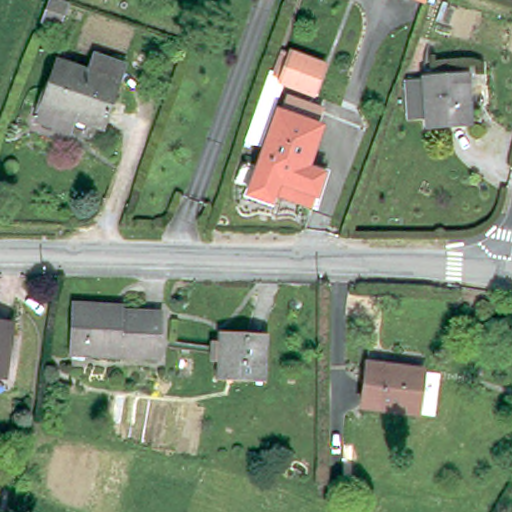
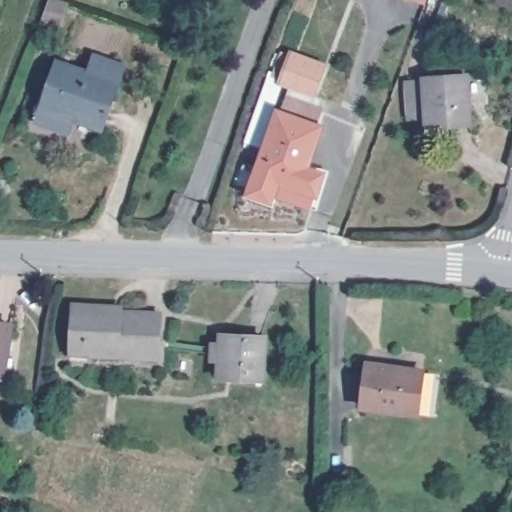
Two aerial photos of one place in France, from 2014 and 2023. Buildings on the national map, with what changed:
unchanged [(426,13),(391,0),(430,0),(426,13)]
unchanged [(65,14),(56,38),(40,32),(49,8),(65,14)]
unchanged [(322,80),(316,99),(273,85),(280,65),(322,80)]
unchanged [(92,66),(123,77),(117,94),(102,139),(82,132),(83,129),(74,127),(69,143),(35,132),(56,73),(87,84),(92,66)]
unchanged [(407,125),(405,85),(425,83),(467,80),(470,127),(428,131),(427,123),(407,125)]
unchanged [(323,184),(311,217),(273,204),(271,211),(249,203),(277,121),(281,122),(287,108),(322,121),(317,135),(321,137),(309,174),(325,180),(323,184)]
unchanged [(70,353),(72,309),(112,311),(122,312),(122,316),(162,318),(160,362),(86,358),(70,357),(70,353)]
unchanged [(4,377),(0,376),(0,323),(12,325),(4,377)]
unchanged [(266,336),(263,378),(220,376),(221,358),(211,357),(212,345),(221,345),(222,334),(266,336)]
unchanged [(429,370),(423,412),(368,405),(373,363),(429,370)]

